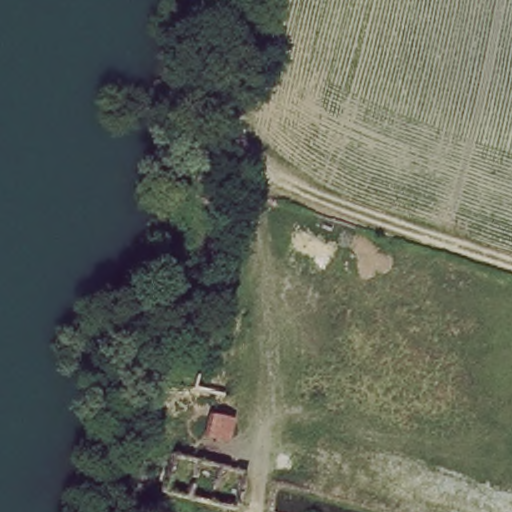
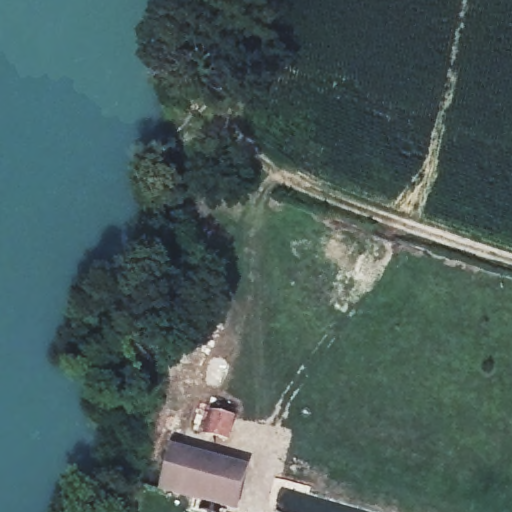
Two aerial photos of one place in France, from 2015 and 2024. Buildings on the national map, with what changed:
new [(240,512),(230,512),(161,494),(172,447),(252,467),(240,512)]

